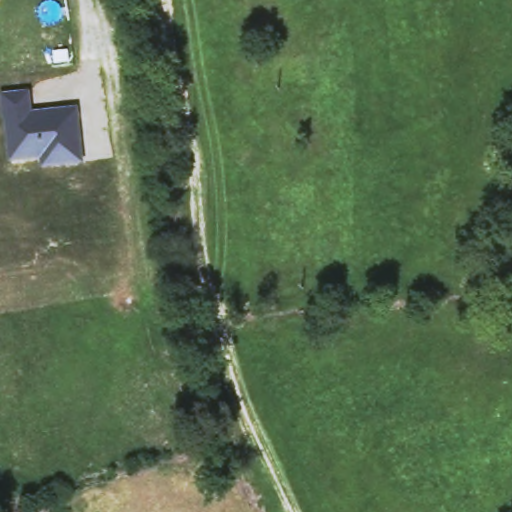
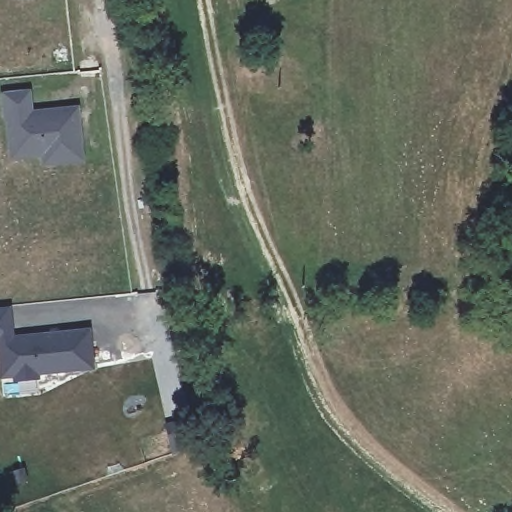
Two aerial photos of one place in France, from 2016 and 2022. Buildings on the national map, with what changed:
unchanged [(2,95),(29,91),(32,111),(77,108),(82,162),(40,166),(39,157),(9,160),(2,95)]
new [(18,332),(94,325),(98,363),(43,369),(44,375),(20,378),(19,371),(6,373),(3,335),(0,336),(0,303),(14,301),(18,332)]

